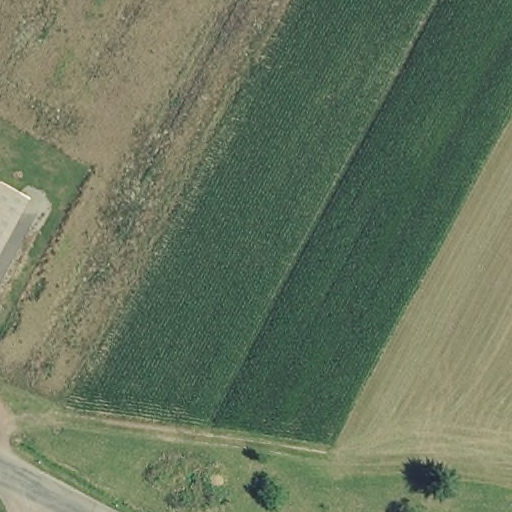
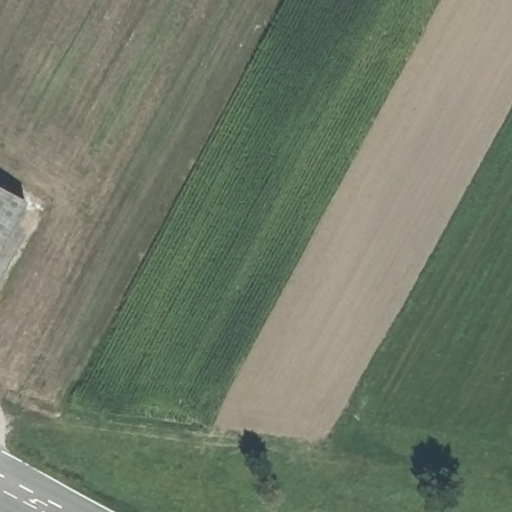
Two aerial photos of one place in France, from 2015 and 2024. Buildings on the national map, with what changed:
unchanged [(0,236),(0,187),(20,198),(0,236)]

